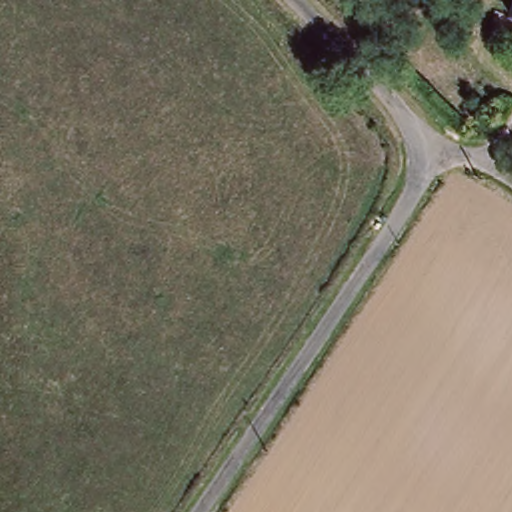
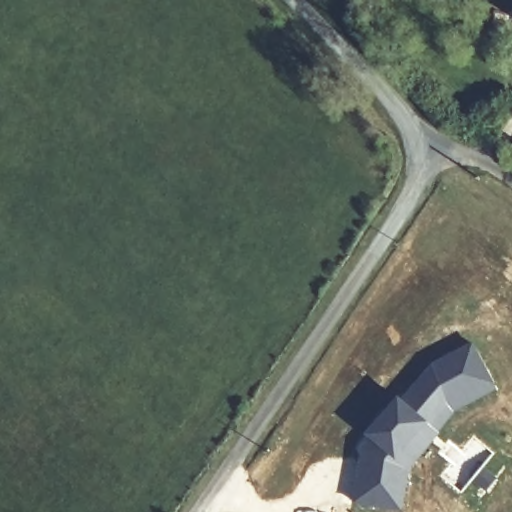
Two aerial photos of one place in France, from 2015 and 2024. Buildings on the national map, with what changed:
new [(432,360),(473,339),(498,389),(456,411),(440,431),(400,393),(432,360)]
new [(398,391),(400,393),(440,431),(412,469),(393,458),(363,433),(398,391)]
new [(359,450),(363,433),(393,458),(412,469),(402,512),(394,512),(349,502),(359,450)]

